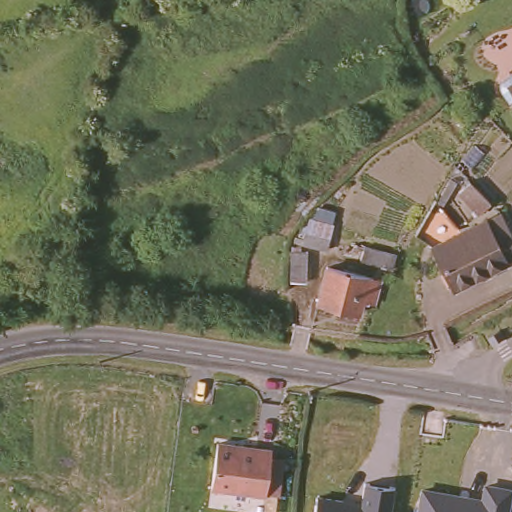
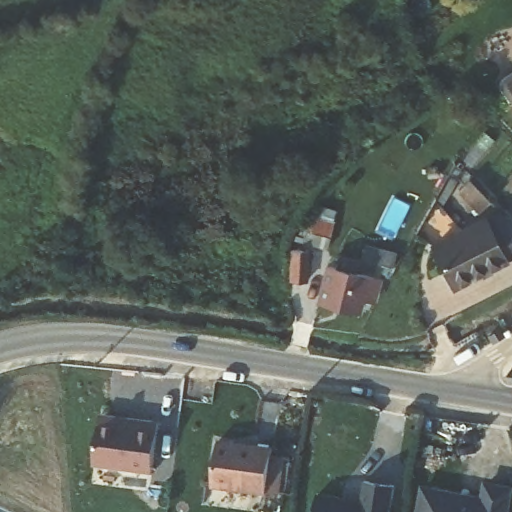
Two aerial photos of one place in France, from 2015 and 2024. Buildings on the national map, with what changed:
unchanged [(512,86),(512,103),(511,102),(504,91),(512,86)]
unchanged [(476,222),(450,209),(457,195),(483,209),(476,222)]
unchanged [(512,253),(512,261),(450,293),(429,254),(495,218),(512,253)]
unchanged [(327,250),(294,240),(296,235),(298,236),(300,232),(303,233),(304,230),(330,237),(327,250)]
unchanged [(300,245),(301,249),(307,250),(307,281),(291,281),(291,245),(300,245)]
unchanged [(392,269),(362,261),(366,247),(396,255),(392,269)]
unchanged [(368,303),(357,300),(354,312),(314,302),(323,268),(374,282),(368,303)]
new [(151,472),(92,465),(98,421),(99,415),(137,420),(157,422),(151,472)]
unchanged [(272,449),(266,493),(212,486),(217,441),(272,449)]
unchanged [(360,479),(397,486),(393,512),(316,512),(317,500),(357,493),(360,479)]
unchanged [(488,482),(512,487),(507,512),(421,512),(426,486),(485,497),(488,482)]

